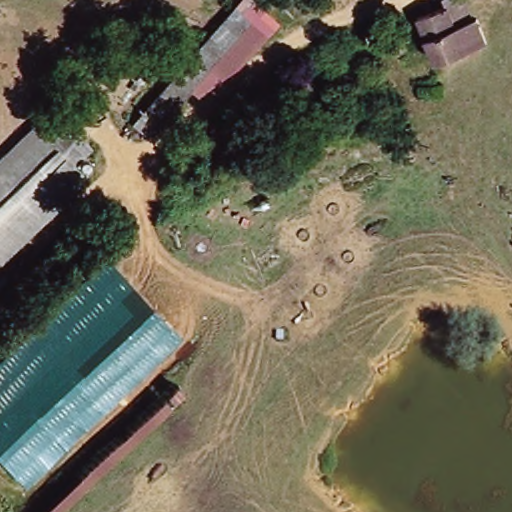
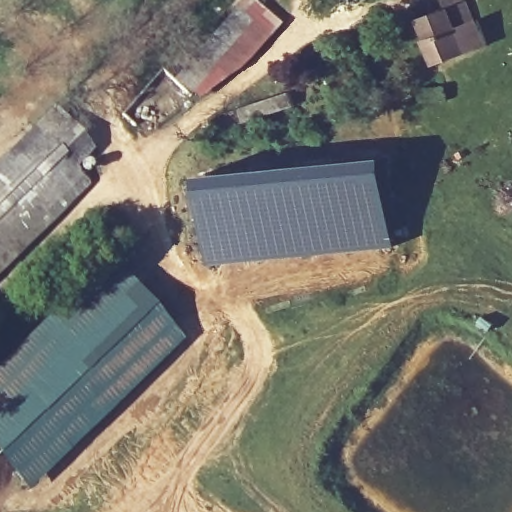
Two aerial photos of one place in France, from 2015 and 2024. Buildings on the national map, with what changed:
unchanged [(247,24),(221,54),(152,132),(146,139),(131,127),(232,11),(236,15),(249,0),(263,0),(244,22),(247,24)]
unchanged [(443,6),(440,0),(464,0),(472,19),(474,17),(484,41),(434,62),(416,18),(443,6)]
unchanged [(293,80),(299,94),(259,110),(253,95),(293,80)]
unchanged [(46,127),(48,129),(96,179),(0,274),(0,173),(6,166),(46,127)]
new [(387,154),(396,245),(211,262),(202,172),(387,154)]
unchanged [(28,490),(0,459),(0,363),(106,258),(183,338),(28,490)]
demolished [(174,385),(182,391),(57,512),(44,512),(174,385)]

